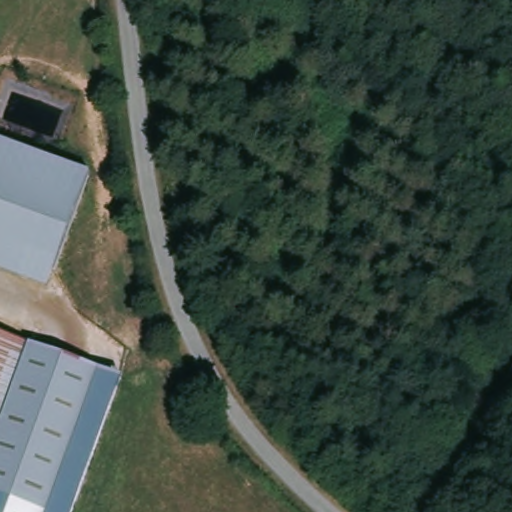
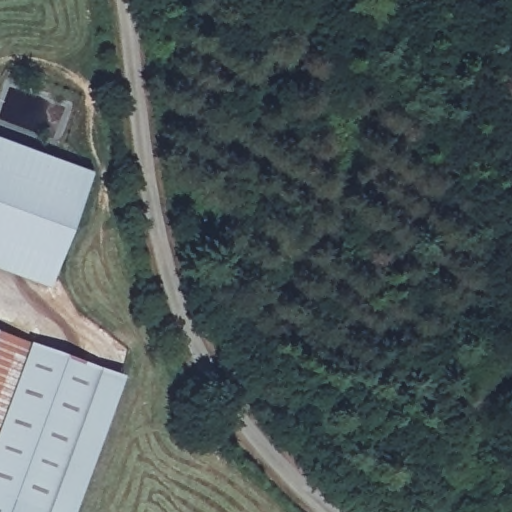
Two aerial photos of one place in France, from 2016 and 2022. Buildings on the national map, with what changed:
unchanged [(0,258),(0,152),(90,184),(68,247),(57,278),(0,258)]
unchanged [(123,378),(74,512),(0,512),(0,332),(29,342),(123,378)]

